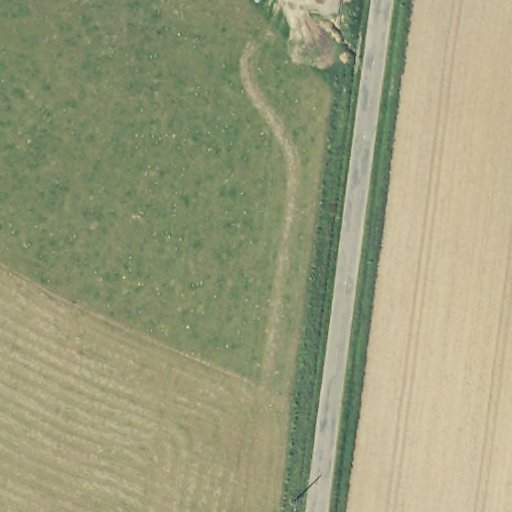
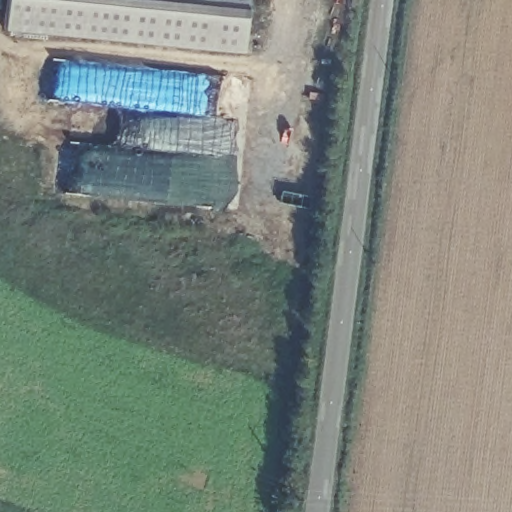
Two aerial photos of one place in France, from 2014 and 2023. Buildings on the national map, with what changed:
new [(3,0),(244,0),(240,54),(2,31),(3,0)]

